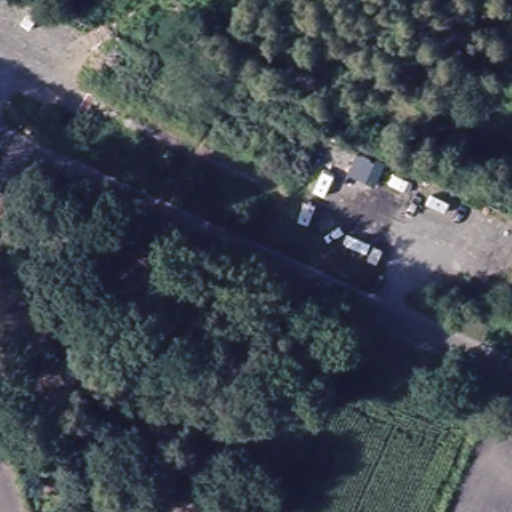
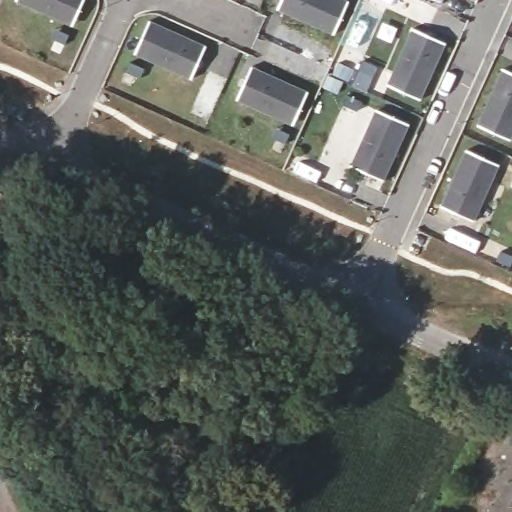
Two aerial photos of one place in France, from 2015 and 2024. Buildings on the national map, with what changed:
new [(20,0),(84,0),(81,8),(73,24),(59,18),(20,0)]
new [(334,34),(277,9),(281,0),(346,0),(349,1),(341,19),(334,34)]
new [(206,46),(191,79),(149,59),(134,53),(142,36),(149,20),(206,46)]
new [(60,33),(69,36),(63,50),(53,46),(60,33)]
new [(411,34),(443,48),(418,105),(402,98),(385,90),(391,76),(411,34)]
new [(362,62),(376,68),(372,78),(358,71),(362,62)]
new [(131,64),(140,69),(134,83),(125,79),(131,64)]
new [(279,118),(236,99),(251,66),(308,92),(301,108),(293,124),(279,118)]
new [(475,131),(501,74),(512,79),(512,136),(507,146),(491,139),(475,131)]
new [(348,95),(361,101),(357,111),(343,104),(348,95)]
new [(374,114),(391,122),(407,129),(381,186),(348,172),(367,129),(374,114)]
new [(275,140),(284,144),(278,158),(269,154),(275,140)]
new [(480,163),(496,170),(490,184),(471,227),(438,213),(464,155),(480,163)]
new [(512,186),(511,185),(512,183),(512,186)]

